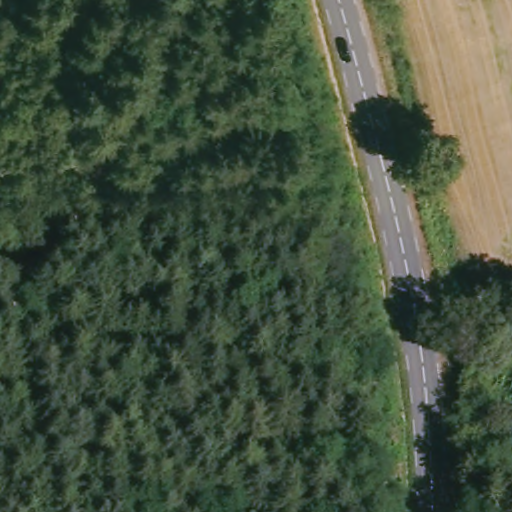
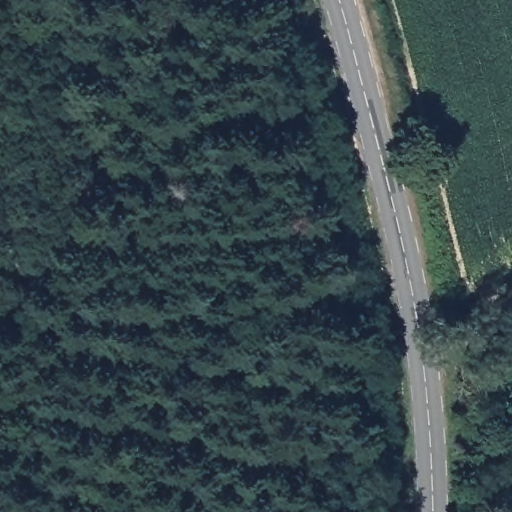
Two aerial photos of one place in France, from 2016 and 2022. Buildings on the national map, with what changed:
[]

